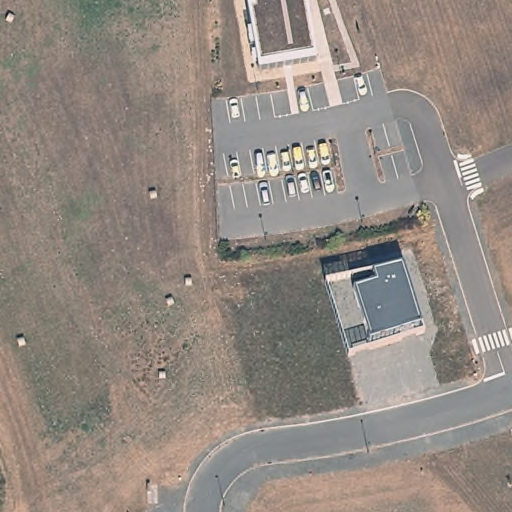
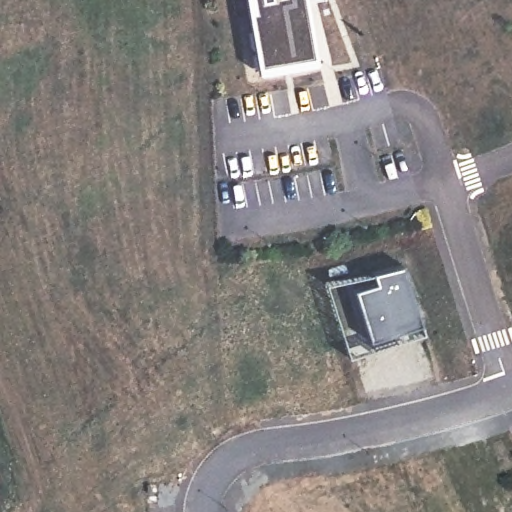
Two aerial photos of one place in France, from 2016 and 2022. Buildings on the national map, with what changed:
unchanged [(317,66),(259,74),(246,0),(309,0),(304,0),(317,66)]
unchanged [(420,324),(371,339),(355,289),(375,284),(372,273),(400,266),(420,324)]

